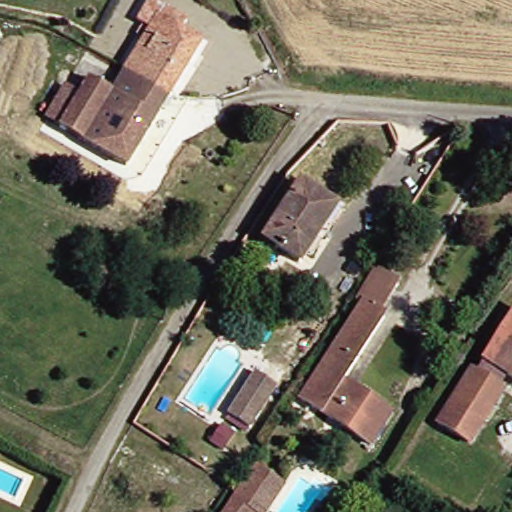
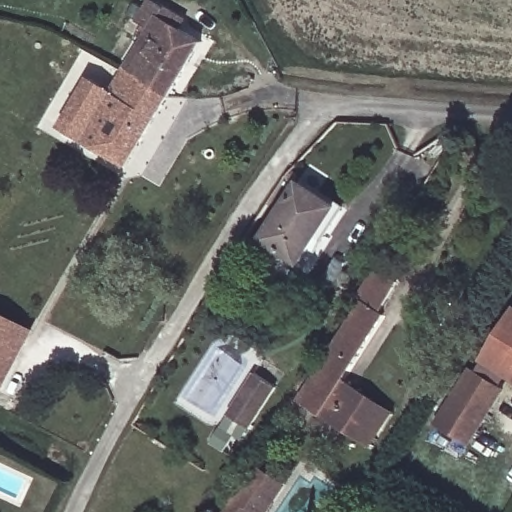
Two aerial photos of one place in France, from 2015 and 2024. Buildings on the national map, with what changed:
unchanged [(119,66),(139,34),(133,30),(139,19),(133,16),(143,0),(152,0),(173,13),(178,16),(174,24),(196,37),(164,91),(119,66)]
unchanged [(164,91),(121,162),(55,121),(83,74),(106,87),(119,66),(164,91)]
unchanged [(330,211),(311,240),(305,236),(289,261),(255,238),(290,185),(330,211)]
unchanged [(335,379),(386,413),(364,444),(296,400),(316,369),(359,303),(352,299),(370,269),(391,282),(372,312),(377,315),(335,379)]
unchanged [(503,372),(495,385),(502,389),(467,443),(437,425),(472,370),(476,373),(512,317),(512,378),(503,372)]
new [(19,345),(0,380),(0,321),(24,334),(19,345)]
unchanged [(271,382),(243,424),(223,410),(250,369),(271,382)]
unchanged [(263,512),(223,512),(250,471),(271,485),(278,490),(263,512)]

